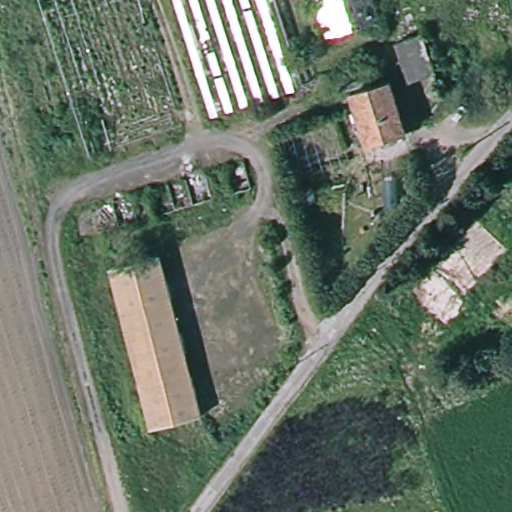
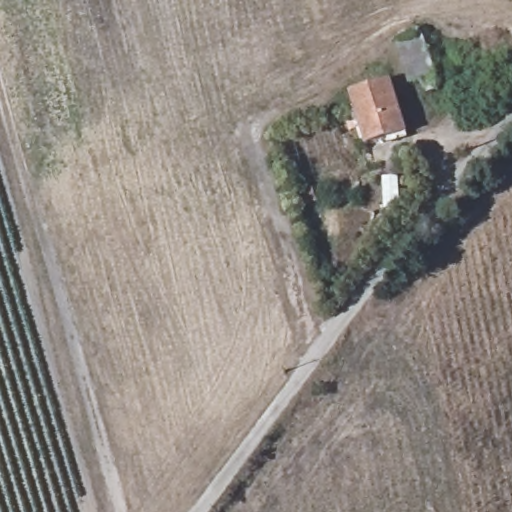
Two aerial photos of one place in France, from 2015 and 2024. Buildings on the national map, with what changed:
unchanged [(433,92),(421,96),(417,83),(402,87),(390,48),(417,40),(433,92)]
unchanged [(400,135),(360,146),(345,98),(385,86),(400,135)]
demolished [(197,424),(145,437),(105,278),(155,265),(197,424)]

